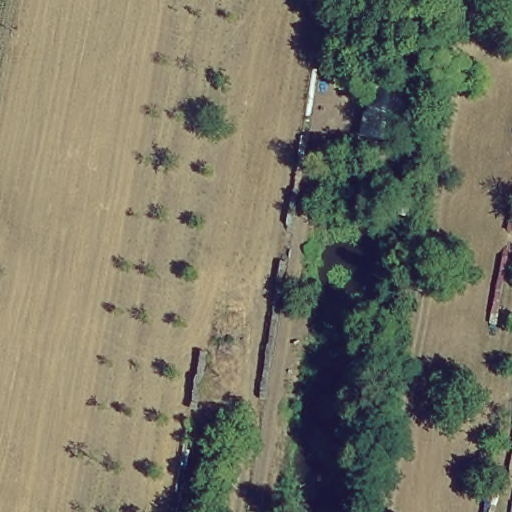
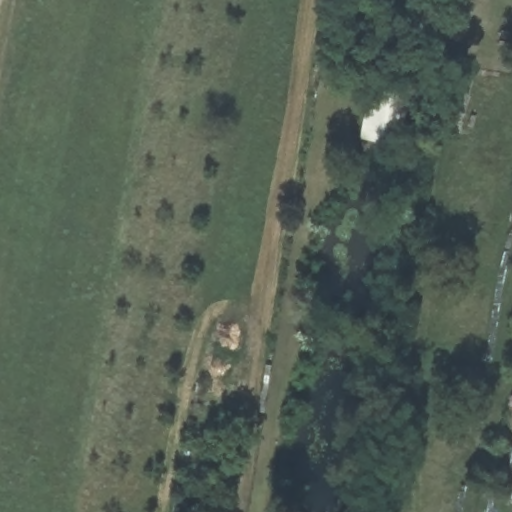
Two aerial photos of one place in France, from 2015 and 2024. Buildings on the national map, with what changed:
unchanged [(370,75),(412,80),(402,143),(362,137),(370,75)]

